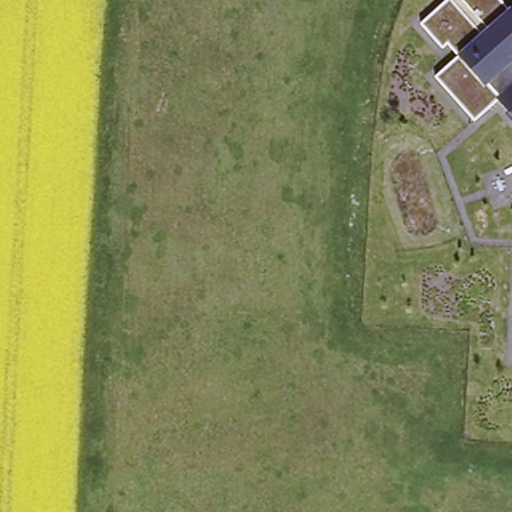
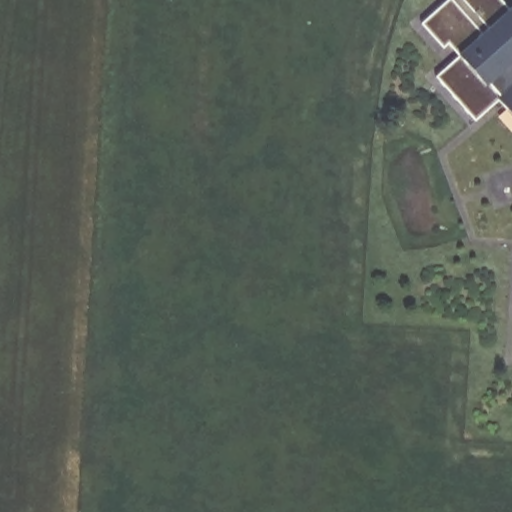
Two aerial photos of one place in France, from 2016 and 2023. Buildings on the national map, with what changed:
unchanged [(499,104),(473,121),(435,78),(459,58),(447,44),(441,49),(420,25),(447,0),(500,0),(509,10),(512,13),(512,119),(499,104)]

